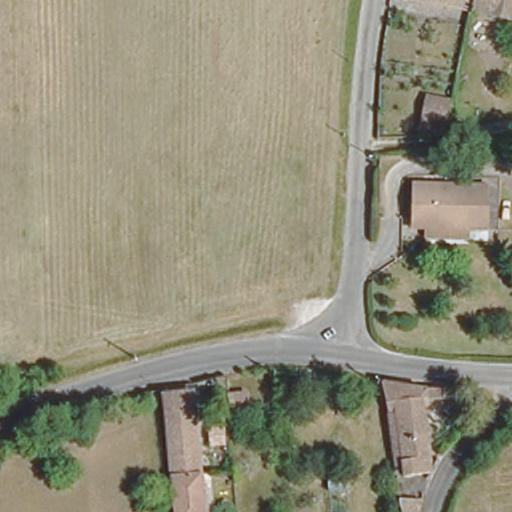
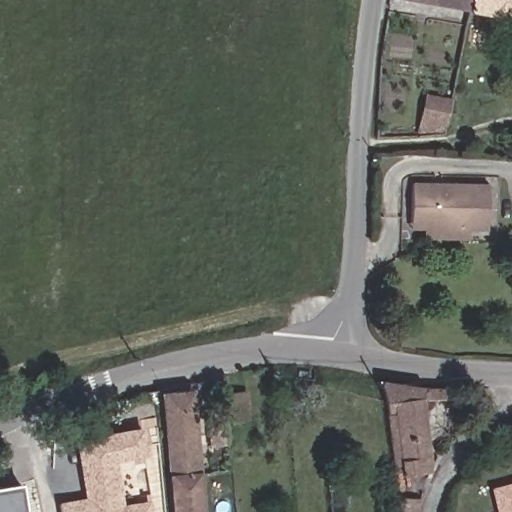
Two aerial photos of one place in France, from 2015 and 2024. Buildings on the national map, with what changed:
unchanged [(481,0),(478,16),(406,0),(481,0)]
unchanged [(512,0),(512,23),(478,16),(481,0),(512,0)]
unchanged [(428,115),(431,96),(457,101),(453,121),(428,115)]
unchanged [(415,126),(427,128),(427,138),(414,138),(415,126)]
unchanged [(427,228),(428,217),(411,217),(411,174),(489,175),(488,217),(469,217),(468,228),(427,228)]
unchanged [(275,369),(276,379),(264,380),(264,370),(275,369)]
unchanged [(387,408),(389,407),(383,377),(420,383),(438,384),(447,385),(446,394),(437,393),(421,393),(432,468),(406,471),(397,472),(387,408)]
unchanged [(170,464),(161,381),(188,378),(196,461),(170,464)]
unchanged [(226,396),(243,395),(245,425),(229,426),(226,396)]
new [(75,442),(146,428),(150,454),(115,460),(123,505),(145,501),(147,512),(61,512),(60,504),(84,498),(75,442)]
unchanged [(170,464),(196,461),(202,512),(174,512),(170,464)]
new [(512,482),(512,512),(497,512),(490,488),(512,482)]
new [(18,484),(26,512),(0,512),(0,489),(18,484)]
unchanged [(398,502),(418,503),(416,512),(400,512),(398,502)]

